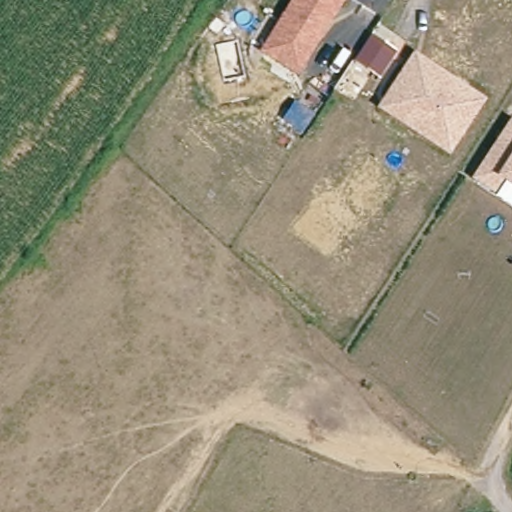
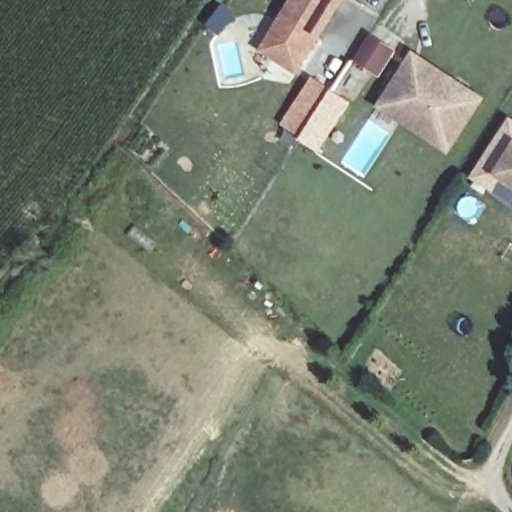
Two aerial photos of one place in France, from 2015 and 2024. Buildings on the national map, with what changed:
unchanged [(299,75),(259,51),(291,0),(344,0),(299,75)]
unchanged [(398,49),(380,77),(353,60),(371,33),(398,49)]
unchanged [(451,156),(377,108),(414,51),(486,99),(451,156)]
new [(320,153),(282,126),(314,78),(353,104),(320,153)]
unchanged [(512,189),(503,183),(494,196),(471,179),(512,118),(512,119),(512,189)]

